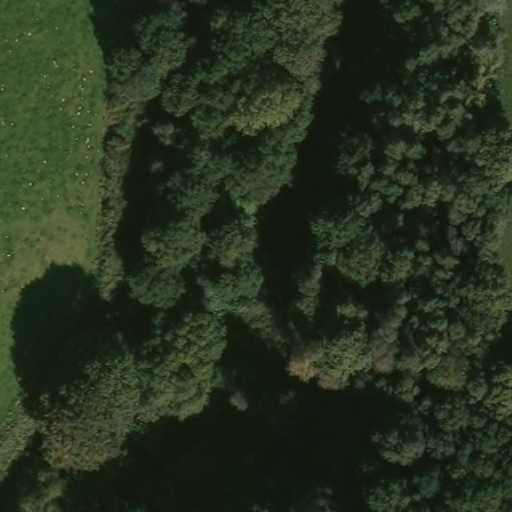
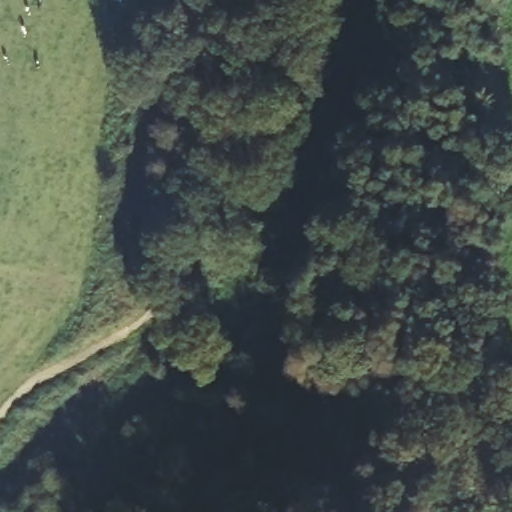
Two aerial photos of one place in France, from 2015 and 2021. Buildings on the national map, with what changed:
[]

